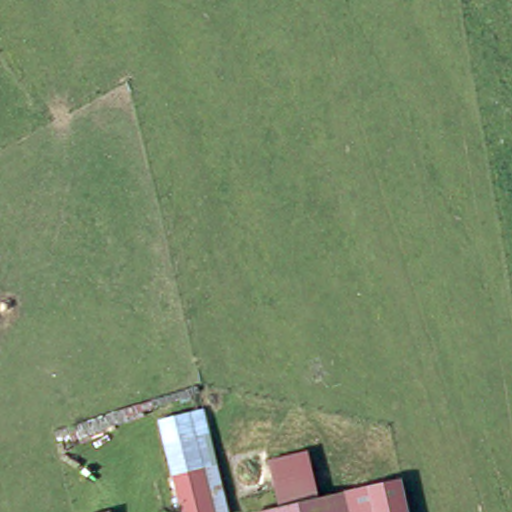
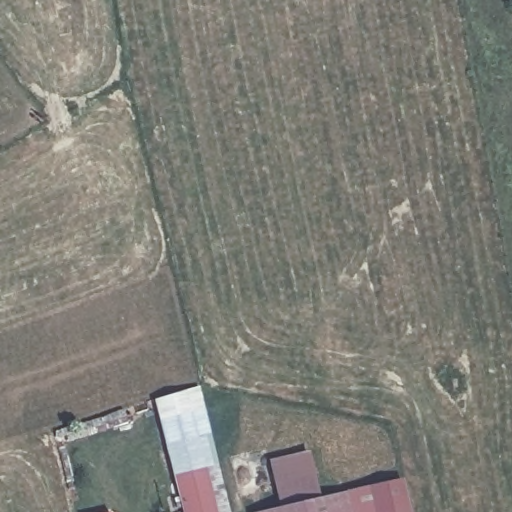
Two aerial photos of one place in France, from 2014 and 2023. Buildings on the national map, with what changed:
unchanged [(226,481),(232,507),(233,512),(218,512),(212,485),(185,394),(200,391),(226,481)]
unchanged [(212,485),(183,492),(155,404),(185,394),(212,485)]
unchanged [(323,497),(285,506),(274,460),(311,450),(323,497)]
unchanged [(368,485),(405,477),(412,512),(374,512),(368,485)]
unchanged [(218,512),(187,512),(183,492),(212,485),(218,512)]
unchanged [(354,512),(260,512),(285,506),(323,497),(349,491),(354,512)]

